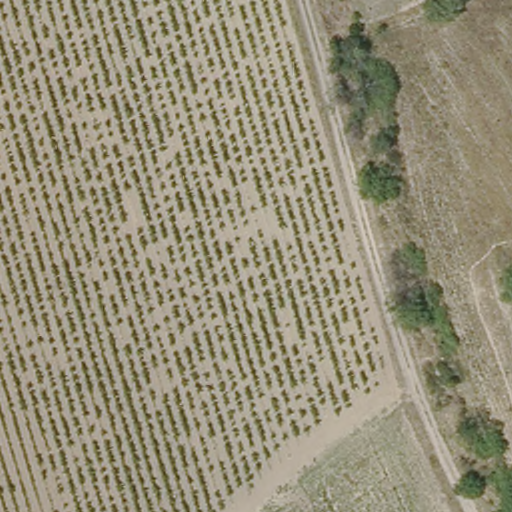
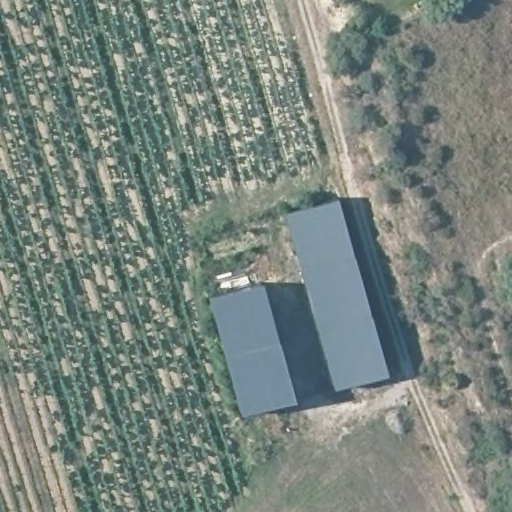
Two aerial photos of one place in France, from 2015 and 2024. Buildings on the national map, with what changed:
new [(383,374),(330,387),(284,211),(336,198),(383,374)]
new [(260,281),(286,398),(233,410),(208,292),(260,281)]

